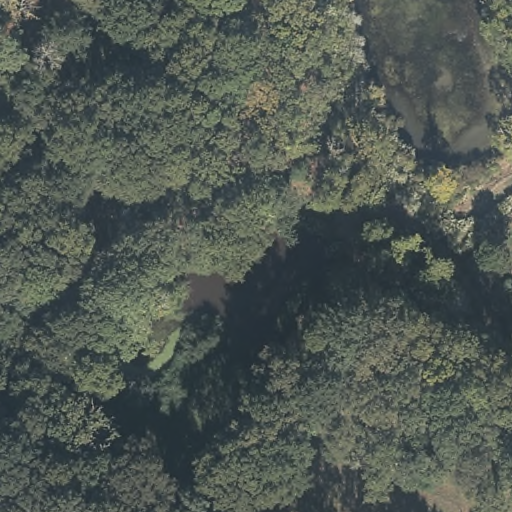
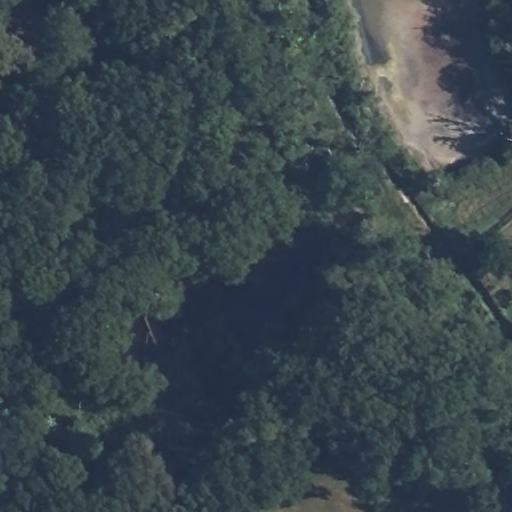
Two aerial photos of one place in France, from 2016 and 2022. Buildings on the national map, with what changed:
[]

